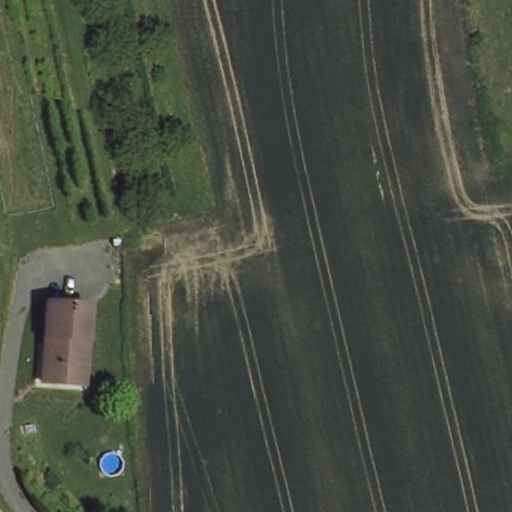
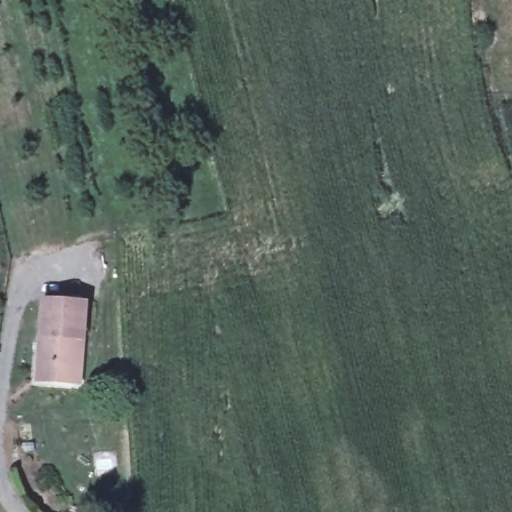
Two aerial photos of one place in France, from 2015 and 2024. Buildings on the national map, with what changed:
unchanged [(67,381),(35,381),(37,300),(77,300),(77,337),(77,382),(67,381)]

